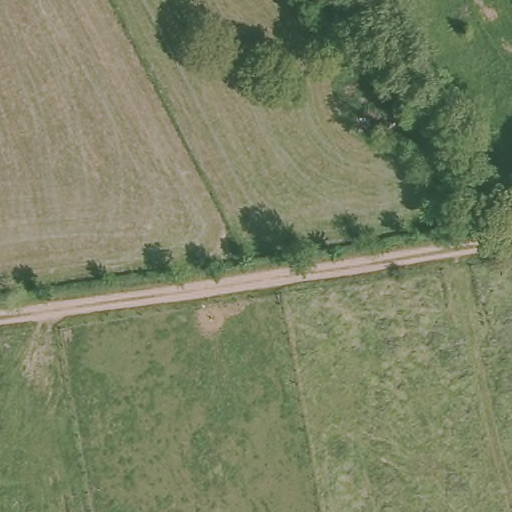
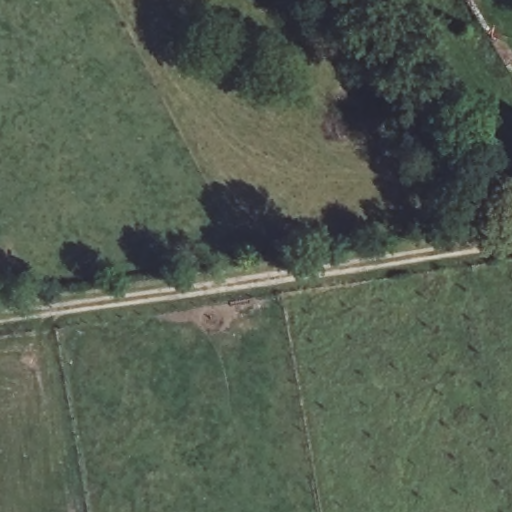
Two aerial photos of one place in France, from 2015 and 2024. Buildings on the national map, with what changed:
[]

